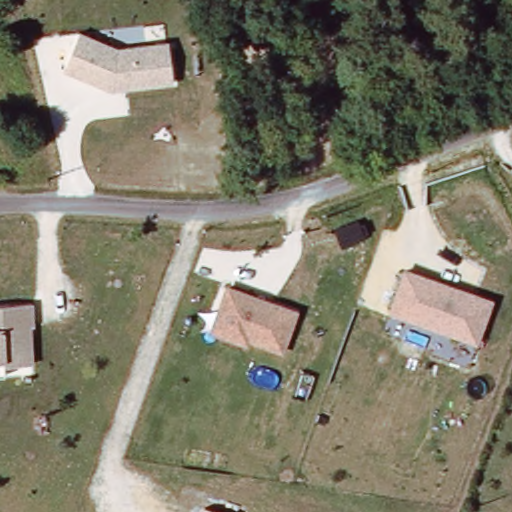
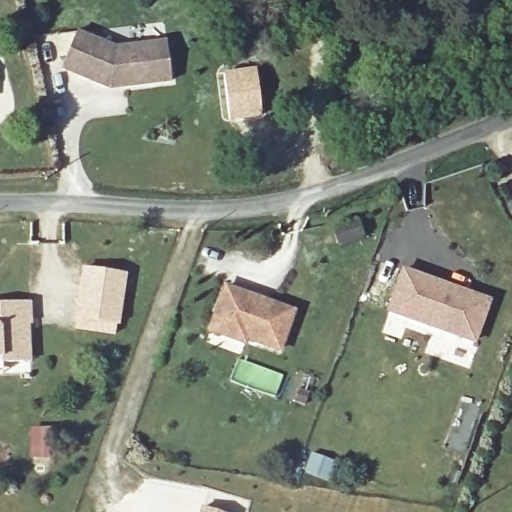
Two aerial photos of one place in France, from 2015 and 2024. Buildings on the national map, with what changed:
unchanged [(114,45),(166,37),(173,82),(109,91),(59,69),(77,27),(114,45)]
new [(255,70),(261,116),(230,119),(225,73),(255,70)]
unchanged [(493,297),(477,345),(384,312),(401,265),(493,297)]
new [(82,266),(127,273),(119,326),(117,326),(116,336),(73,329),(82,266)]
unchanged [(298,309),(282,352),(248,341),(245,347),(205,333),(223,283),(298,309)]
unchanged [(26,302),(27,324),(25,325),(28,362),(23,363),(0,364),(0,303),(26,302)]
unchanged [(219,512),(199,512),(200,507),(219,512)]

